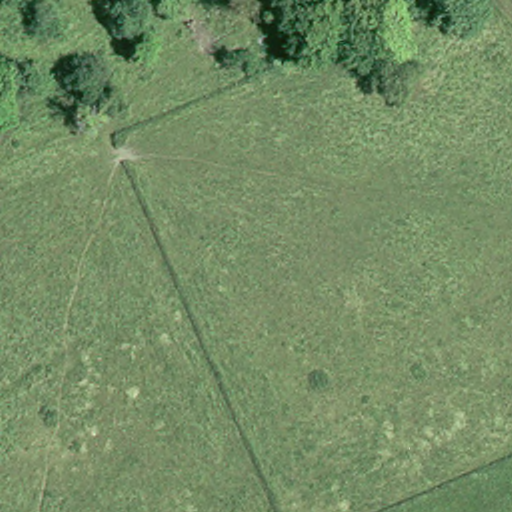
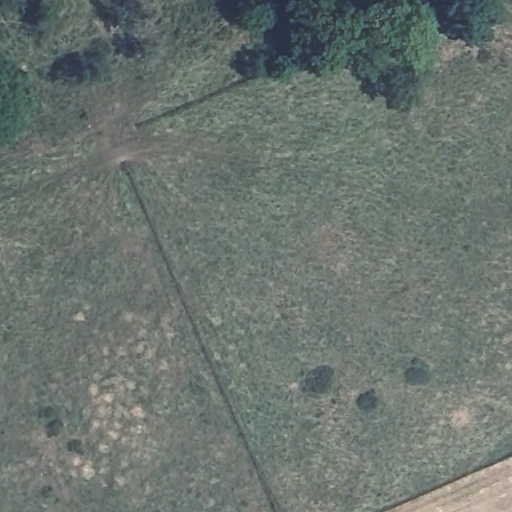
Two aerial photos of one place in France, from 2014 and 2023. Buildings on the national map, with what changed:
unchanged [(23,64),(30,61),(35,72),(29,75),(23,64)]

